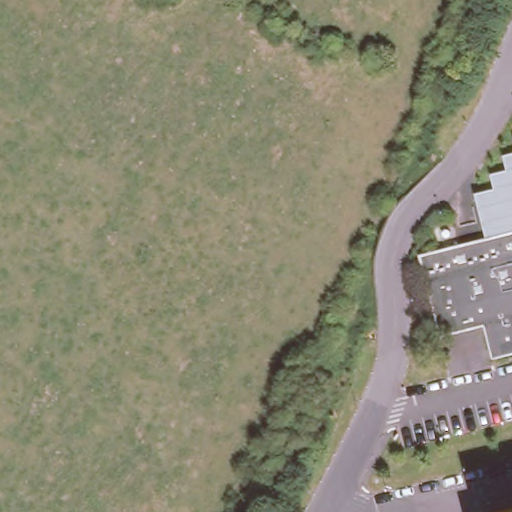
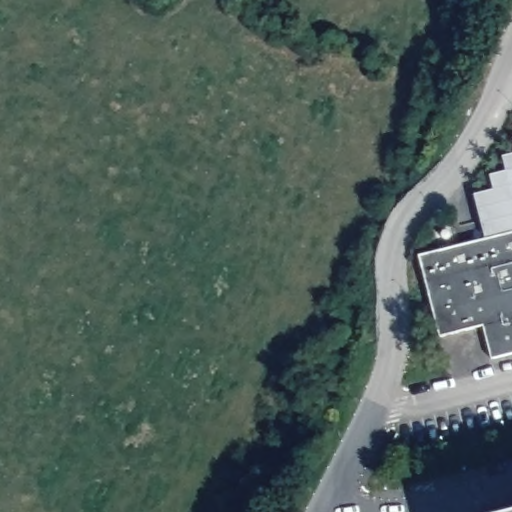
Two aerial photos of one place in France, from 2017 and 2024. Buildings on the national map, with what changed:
unchanged [(512,139),(512,142),(511,139),(512,139)]
unchanged [(472,195),(491,190),(487,176),(504,172),(500,156),(512,154),(512,230),(483,237),(472,195)]
unchanged [(434,336),(413,255),(483,237),(512,230),(512,352),(485,359),(477,326),(434,336)]
unchanged [(503,510),(503,512),(498,512),(503,510)]

